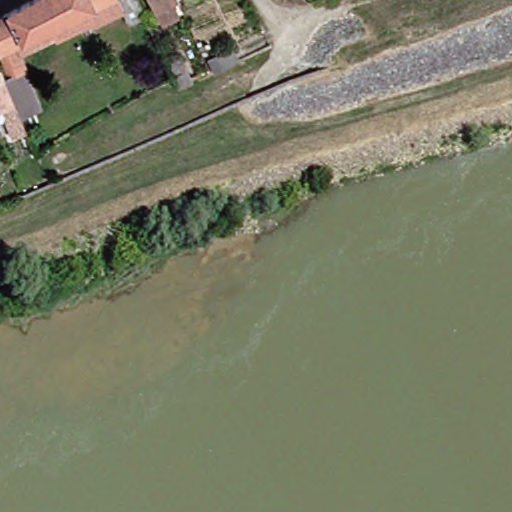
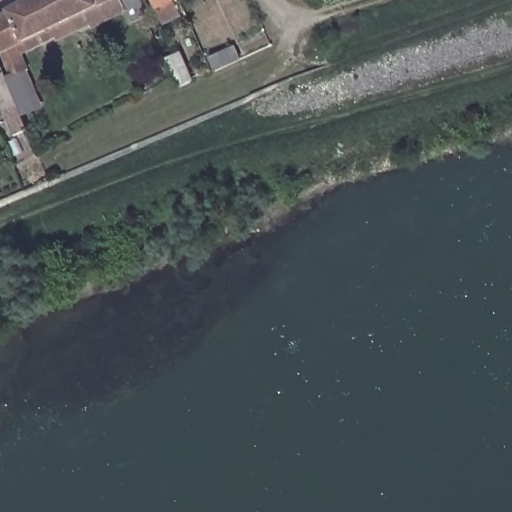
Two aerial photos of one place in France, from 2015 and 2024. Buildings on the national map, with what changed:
unchanged [(9,78),(0,56),(0,54),(4,53),(0,42),(0,18),(25,6),(36,0),(119,0),(57,29),(60,35),(50,41),(46,34),(15,48),(23,71),(27,70),(41,113),(25,119),(14,124),(6,106),(18,101),(9,78)]
unchanged [(131,6),(128,0),(143,0),(144,1),(131,6)]
unchanged [(182,16),(166,23),(155,0),(177,0),(176,1),(182,16)]
unchanged [(204,56),(232,43),(239,56),(209,70),(204,56)]
unchanged [(189,76),(175,83),(171,74),(164,56),(169,54),(176,50),(189,76)]
unchanged [(1,81),(0,81),(0,79),(1,81)]
unchanged [(4,96),(1,104),(0,105),(0,87),(4,96)]
unchanged [(32,158),(23,135),(30,131),(39,154),(32,158)]

